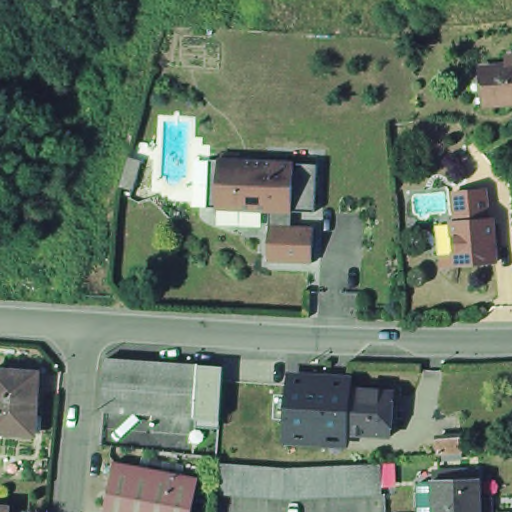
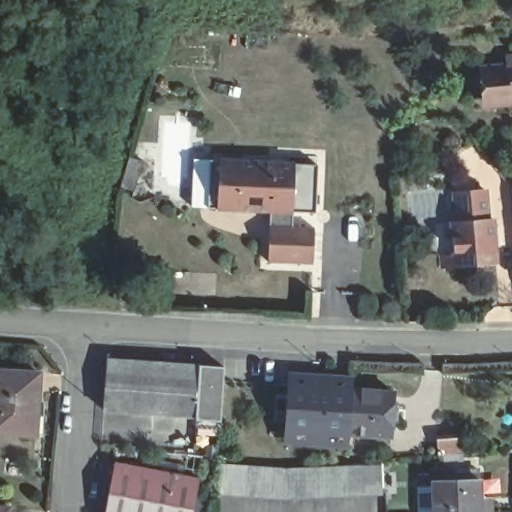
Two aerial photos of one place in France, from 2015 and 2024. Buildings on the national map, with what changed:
unchanged [(508,59),(512,58),(512,104),(491,106),(490,68),(510,67),(508,59)]
unchanged [(277,152),(322,155),(321,163),(319,211),(291,210),(290,226),(318,226),(316,262),(270,259),(273,208),(212,205),(215,157),(276,161),(277,152)]
unchanged [(490,186),(491,215),(496,215),(499,259),(445,262),(443,251),(458,250),(456,217),(461,217),(459,187),(490,186)]
unchanged [(321,417),(320,432),(223,427),(220,427),(221,411),(105,403),(107,360),(223,367),(223,380),(227,380),(323,386),(321,417)]
unchanged [(42,438),(0,437),(0,376),(45,377),(42,438)]
unchanged [(347,433),(320,432),(321,417),(323,386),(352,388),(350,433),(347,433)]
unchanged [(352,388),(395,391),(392,435),(350,433),(352,388)]
unchanged [(437,437),(462,435),(464,450),(438,451),(437,437)]
unchanged [(253,492),(241,491),(226,489),(215,487),(212,487),(215,456),(229,457),(243,458),(255,460),(260,460),(268,460),(282,461),(296,461),(310,460),(313,460),(323,460),(336,459),(350,458),(362,458),(376,457),(378,488),(364,490),(350,490),(337,491),(324,491),(310,492),(303,492),(297,492),(278,493),(266,492),(253,492)]
unchanged [(195,487),(189,512),(99,512),(108,468),(195,487)]
unchanged [(475,489),(476,512),(429,512),(428,491),(475,489)]

